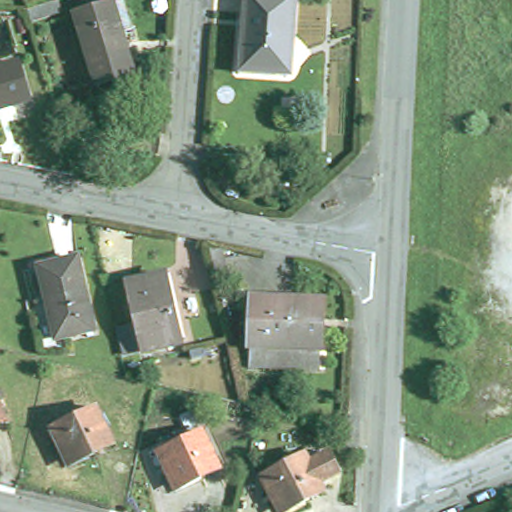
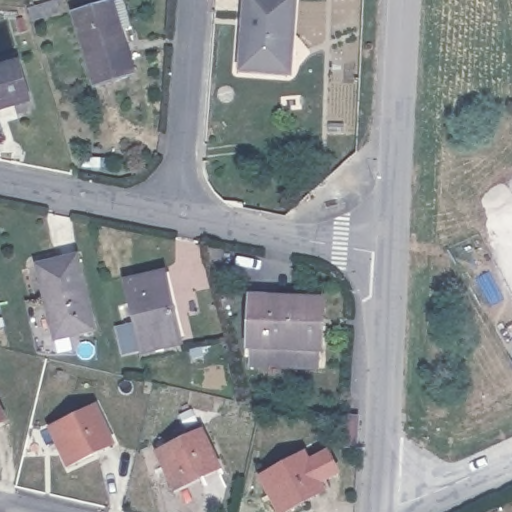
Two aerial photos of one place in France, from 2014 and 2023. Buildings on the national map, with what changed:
unchanged [(253,0),(294,0),(290,71),(247,68),(253,0)]
unchanged [(69,17),(66,7),(78,4),(80,14),(69,17)]
unchanged [(117,37),(131,80),(96,91),(73,22),(122,6),(130,34),(117,37)]
unchanged [(0,106),(0,68),(22,62),(31,99),(0,106)]
unchanged [(60,337),(42,266),(80,257),(97,330),(60,337)]
unchanged [(126,281),(163,272),(180,343),(145,351),(143,347),(123,353),(115,327),(136,322),(126,281)]
unchanged [(275,297),(321,298),(320,327),(326,327),(325,368),(255,363),(257,301),(275,302),(275,297)]
unchanged [(7,422),(0,425),(0,406),(7,422)]
unchanged [(96,412),(115,452),(96,461),(95,457),(71,467),(63,447),(59,449),(51,432),(96,412)]
unchanged [(345,430),(356,431),(355,442),(345,442),(345,430)]
unchanged [(203,437),(221,475),(201,485),(200,482),(178,492),(169,471),(165,472),(158,456),(203,437)]
unchanged [(324,465),(333,460),(343,478),(325,486),(329,495),(310,506),(307,504),(293,512),(285,512),(276,495),(274,496),(266,482),(319,456),(324,465)]

